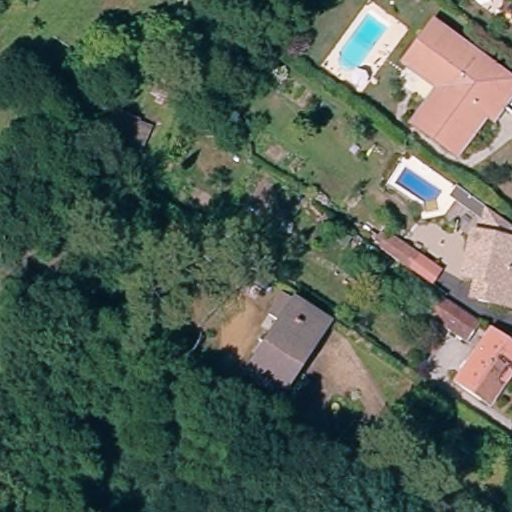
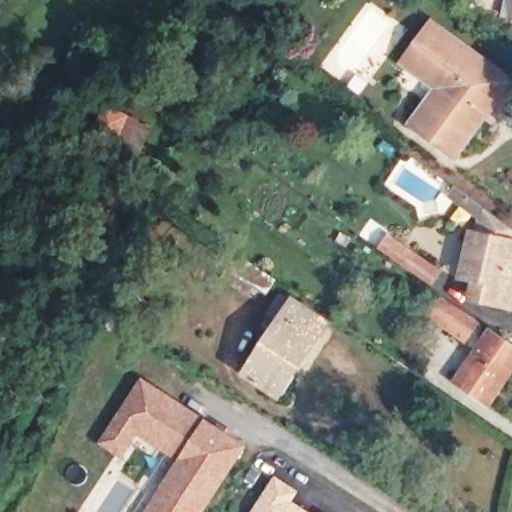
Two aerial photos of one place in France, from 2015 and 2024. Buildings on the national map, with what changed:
unchanged [(512,101),(495,125),(486,119),(455,157),(408,122),(433,91),(400,65),(432,22),(512,82),(512,101)]
unchanged [(129,147),(98,133),(107,112),(138,126),(129,147)]
unchanged [(466,209),(451,199),(454,195),(448,191),(453,183),(474,197),(512,225),(512,306),(479,298),(483,280),(464,275),(469,254),(477,217),(466,209)]
unchanged [(407,266),(394,257),(377,245),(387,231),(404,244),(416,253),(407,266)]
unchanged [(271,281),(263,292),(248,282),(242,291),(224,278),(237,258),(271,281)]
unchanged [(243,376),(275,331),(262,322),(281,295),(326,327),(278,401),(243,376)]
unchanged [(461,332),(436,315),(446,301),(471,318),(461,332)]
unchanged [(454,381),(490,330),(512,345),(512,365),(486,402),(454,381)]
new [(249,446),(206,512),(146,512),(162,486),(178,462),(139,435),(123,461),(99,445),(144,377),(249,446)]
new [(300,492),(294,501),(310,512),(252,512),(275,476),(300,492)]
new [(325,511),(326,512),(324,512),(325,511)]

